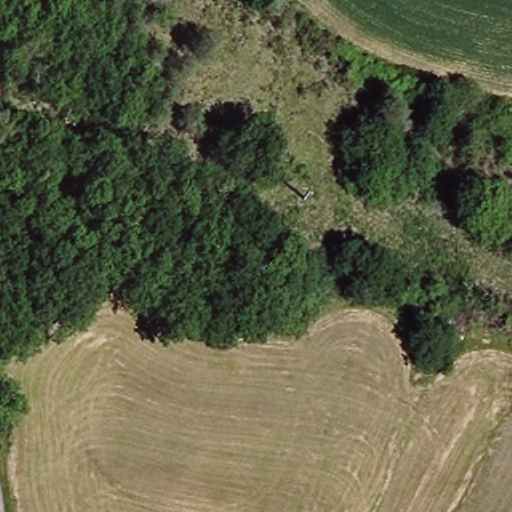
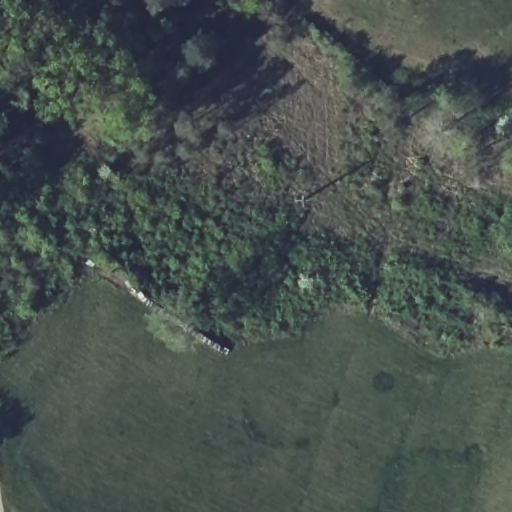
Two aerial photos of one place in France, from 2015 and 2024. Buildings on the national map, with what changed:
[]

